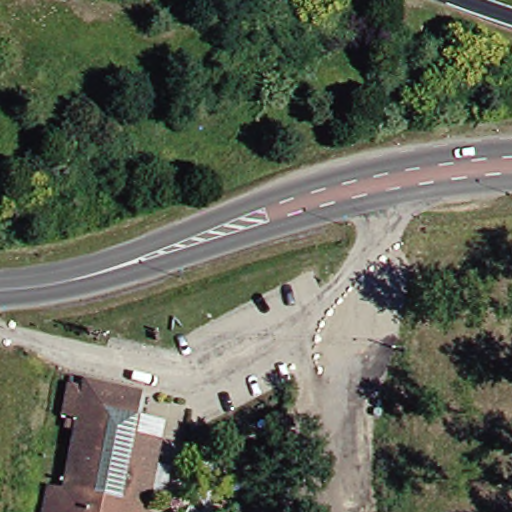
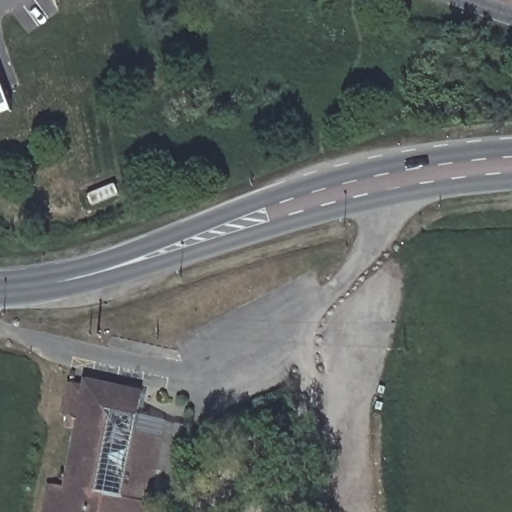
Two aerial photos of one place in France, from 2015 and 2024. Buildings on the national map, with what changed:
new [(0,114),(0,81),(11,110),(0,114)]
unchanged [(142,512),(54,512),(70,431),(60,429),(62,418),(56,417),(63,385),(78,388),(80,381),(136,392),(129,434),(156,439),(142,512)]

